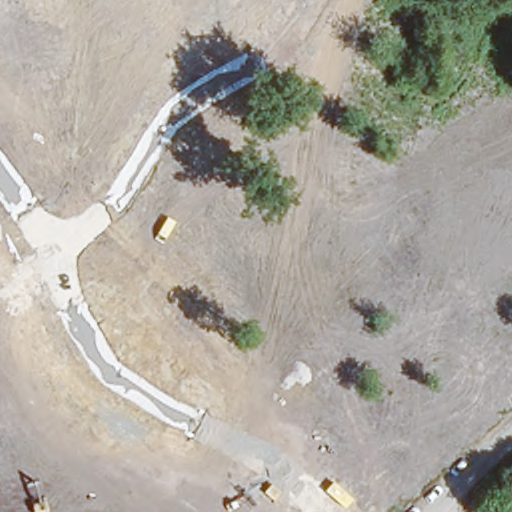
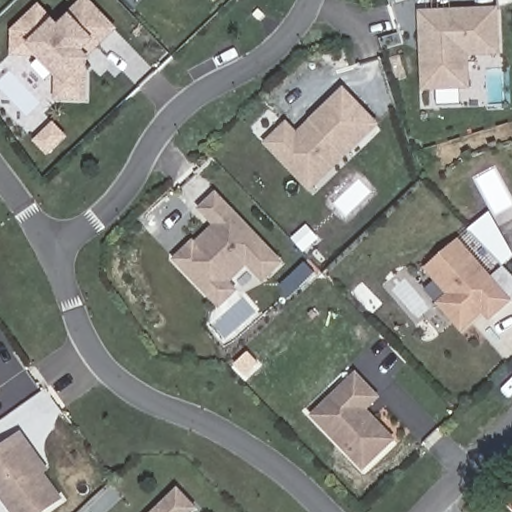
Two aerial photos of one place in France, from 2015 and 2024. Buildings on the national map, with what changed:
new [(84,99),(57,98),(59,74),(40,53),(12,53),(13,31),(37,7),(56,27),(83,0),(84,0),(112,29),(84,57),(84,99)]
new [(498,52),(466,54),(467,85),(423,87),(419,14),(495,11),(498,52)]
new [(346,153),(340,147),(319,167),(288,167),(266,145),(286,126),(296,136),(343,91),(375,125),(346,153)]
new [(263,283),(247,267),(230,283),(237,291),(217,309),(172,260),(194,239),(196,242),(212,226),(197,210),(217,192),(283,263),(263,283)]
new [(424,269),(460,239),(512,301),(489,321),(483,314),(461,333),(435,303),(445,295),(424,269)]
new [(367,409),(397,440),(362,473),(308,417),(356,371),(381,398),(367,409)]
new [(64,500),(47,512),(10,512),(0,498),(0,446),(21,431),(49,469),(45,473),(64,500)]
new [(197,508),(193,512),(152,512),(177,487),(197,508)]

